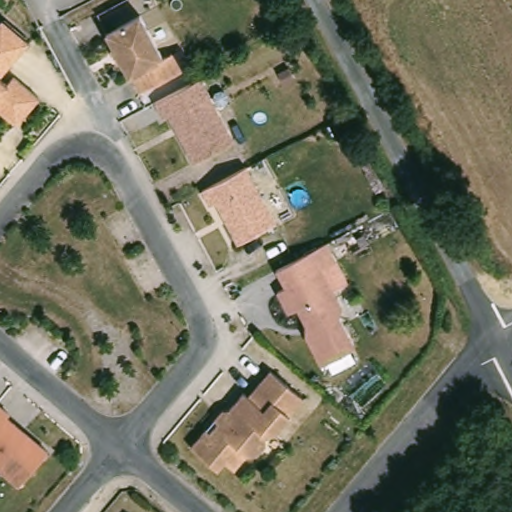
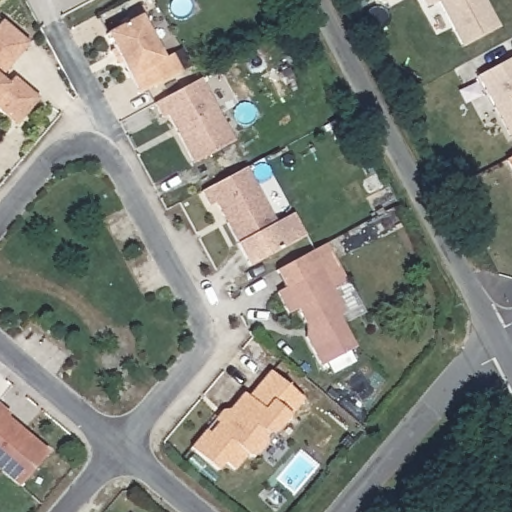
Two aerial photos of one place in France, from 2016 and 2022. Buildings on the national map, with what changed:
new [(426,5),(423,0),(438,0),(426,5)]
new [(500,27),(462,46),(439,0),(485,0),(500,27)]
unchanged [(162,60),(169,53),(178,72),(136,92),(127,76),(102,29),(136,16),(162,60)]
unchanged [(5,20),(32,41),(9,71),(42,95),(19,125),(0,106),(0,25),(5,20)]
new [(478,75),(512,57),(512,138),(511,139),(478,75)]
unchanged [(231,142),(191,160),(165,113),(158,115),(149,101),(196,75),(231,142)]
new [(512,156),(512,168),(507,158),(512,156)]
unchanged [(274,224),(236,242),(211,200),(204,204),(196,189),(242,166),(274,224)]
unchanged [(338,306),(335,318),(350,345),(316,361),(301,332),(303,321),(295,308),(289,310),(278,286),(319,268),(338,306)]
unchanged [(299,397),(269,435),(262,430),(263,441),(253,456),(247,453),(233,470),(222,461),(216,468),(188,446),(201,429),(208,433),(217,422),(213,417),(240,391),(244,393),(264,370),(299,397)]
unchanged [(16,484),(0,472),(0,405),(5,408),(6,417),(41,446),(16,484)]

